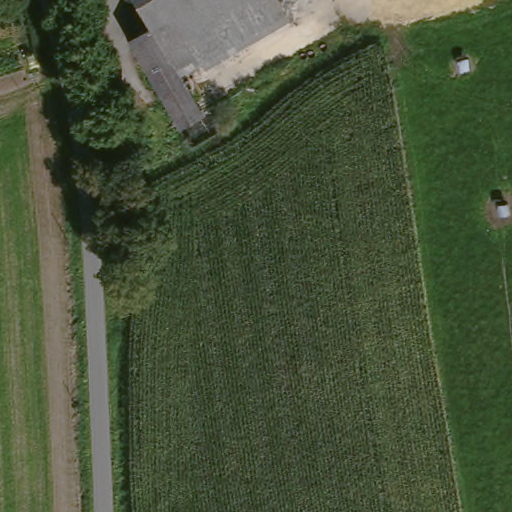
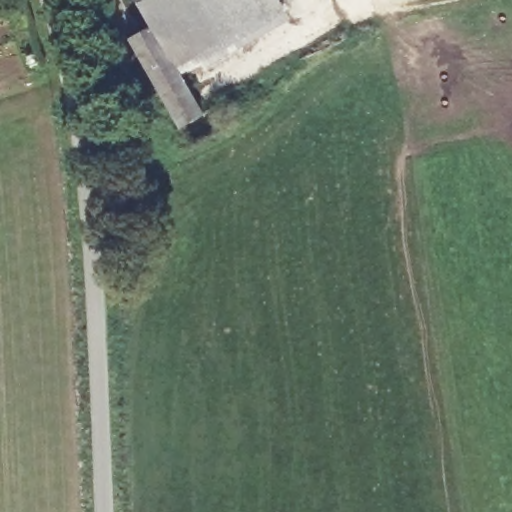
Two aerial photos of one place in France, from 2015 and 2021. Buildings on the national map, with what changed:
unchanged [(169,82),(145,34),(127,0),(279,0),(294,27),(169,82)]
unchanged [(169,82),(192,124),(161,137),(116,47),(145,34),(169,82)]

